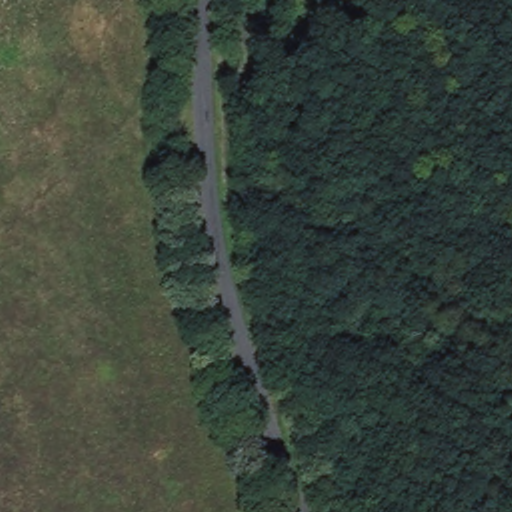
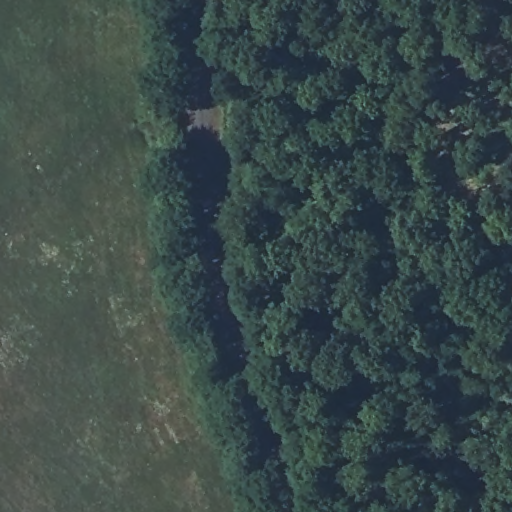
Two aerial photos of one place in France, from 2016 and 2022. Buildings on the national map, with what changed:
[]

